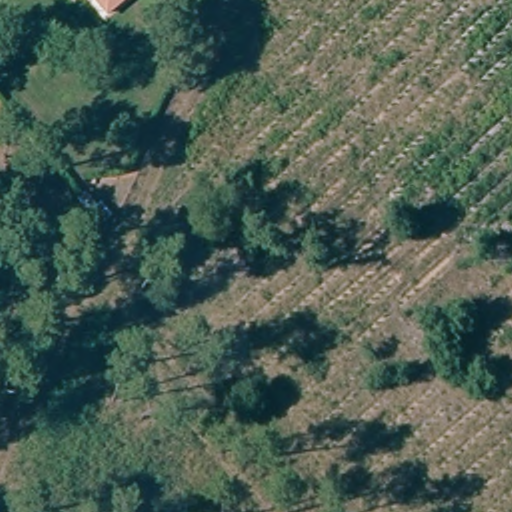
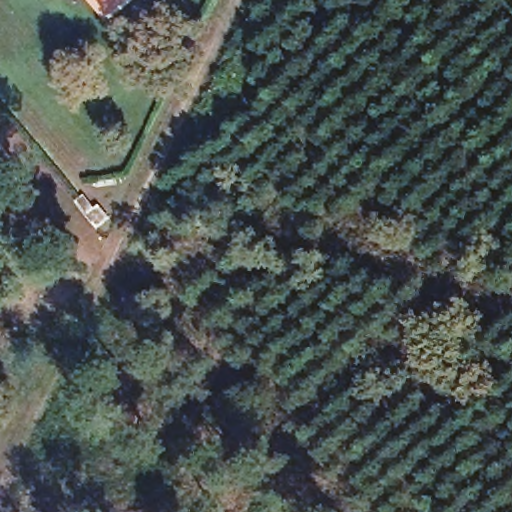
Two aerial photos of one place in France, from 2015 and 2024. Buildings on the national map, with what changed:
unchanged [(98,14),(87,0),(118,0),(98,14)]

